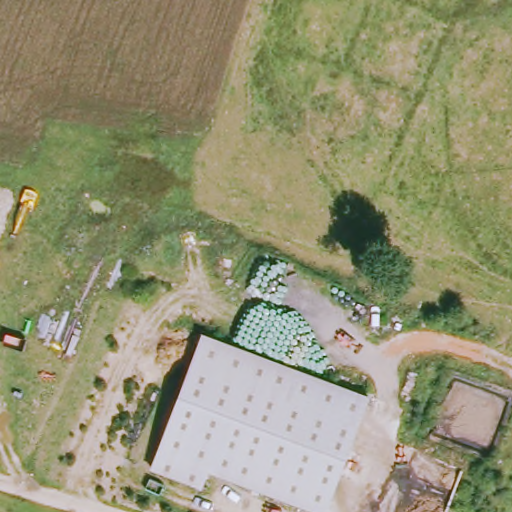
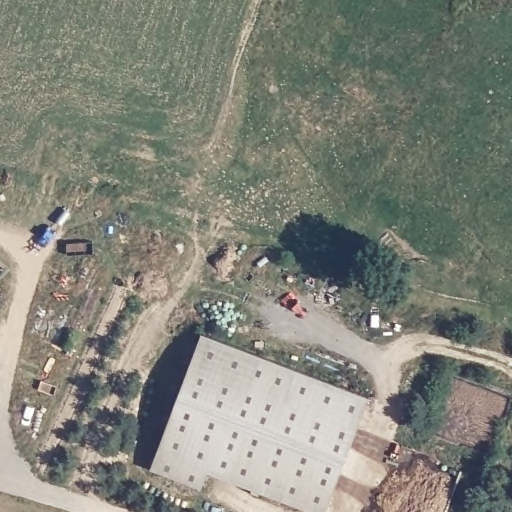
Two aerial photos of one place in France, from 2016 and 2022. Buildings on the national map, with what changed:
unchanged [(329,512),(312,512),(211,472),(204,492),(152,470),(204,335),(372,398),(329,512)]

